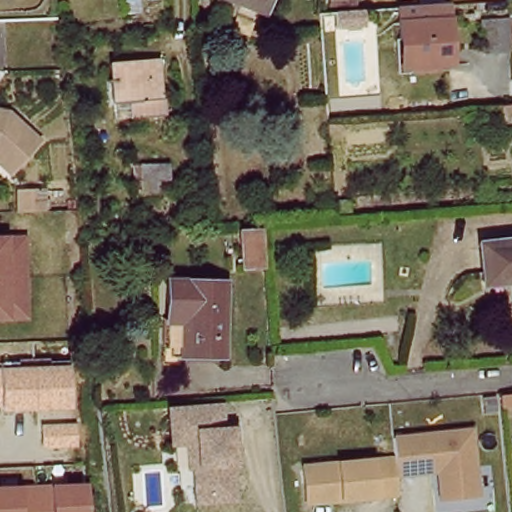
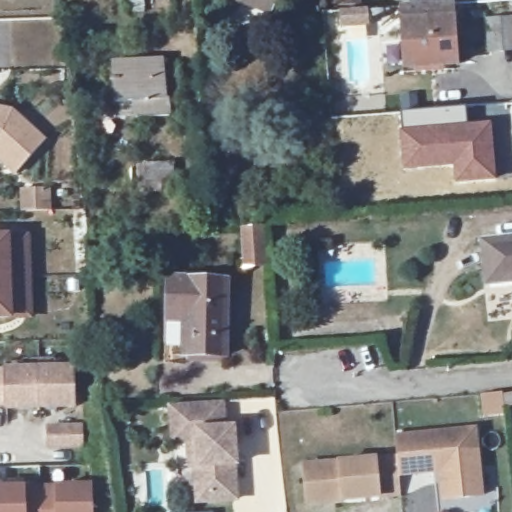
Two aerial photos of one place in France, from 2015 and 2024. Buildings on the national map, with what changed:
unchanged [(164,0),(165,5),(152,7),(151,0),(164,0)]
unchanged [(231,0),(271,0),(267,14),(231,0)]
unchanged [(455,2),(460,66),(440,65),(440,70),(410,72),(405,7),(455,2)]
unchanged [(344,32),(343,17),(371,15),(373,30),(344,32)]
unchanged [(489,22),(512,18),(512,52),(495,55),(489,22)]
unchanged [(114,69),(164,65),(168,117),(138,121),(136,106),(118,107),(114,69)]
new [(466,106),(468,122),(401,127),(400,111),(466,106)]
unchanged [(47,142),(19,174),(0,158),(0,110),(14,113),(47,142)]
new [(401,127),(468,122),(491,121),(497,180),(453,184),(452,167),(401,172),(398,128),(401,127)]
unchanged [(144,170),(176,167),(177,185),(146,187),(144,170)]
new [(52,189),(53,211),(22,211),(21,190),(52,189)]
demolished [(64,201),(64,224),(39,224),(39,201),(64,201)]
unchanged [(33,237),(37,320),(13,321),(0,321),(0,236),(11,236),(33,237)]
unchanged [(512,241),(512,283),(488,285),(487,271),(485,244),(512,241)]
unchanged [(190,322),(170,324),(168,288),(228,285),(233,357),(193,360),(190,322)]
unchanged [(78,410),(0,413),(0,369),(75,366),(78,410)]
unchanged [(224,432),(232,431),(233,444),(235,467),(232,467),(235,502),(196,505),(193,470),(188,470),(186,446),(171,447),(170,429),(168,409),(221,405),(224,432)]
unchanged [(438,465),(396,468),(394,441),(393,431),(472,423),(479,489),(449,492),(441,492),(438,465)]
unchanged [(373,452),(376,490),(305,496),(302,458),(373,452)]
unchanged [(57,485),(93,483),(95,512),(0,512),(0,487),(27,486),(57,485)]

